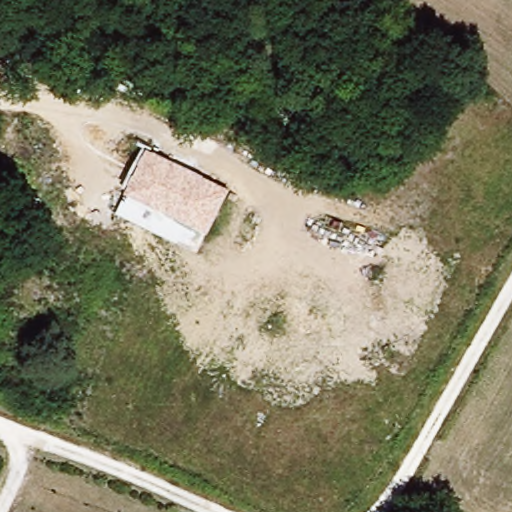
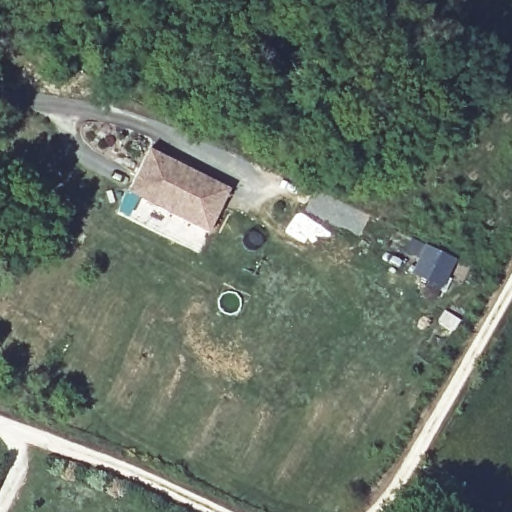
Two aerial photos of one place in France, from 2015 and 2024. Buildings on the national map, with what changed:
unchanged [(148,150),(229,189),(198,253),(116,215),(148,150)]
new [(416,259),(403,252),(410,237),(455,260),(439,290),(408,274),(416,259)]

